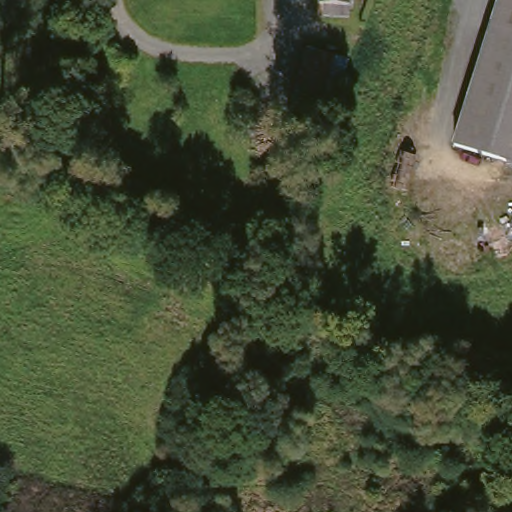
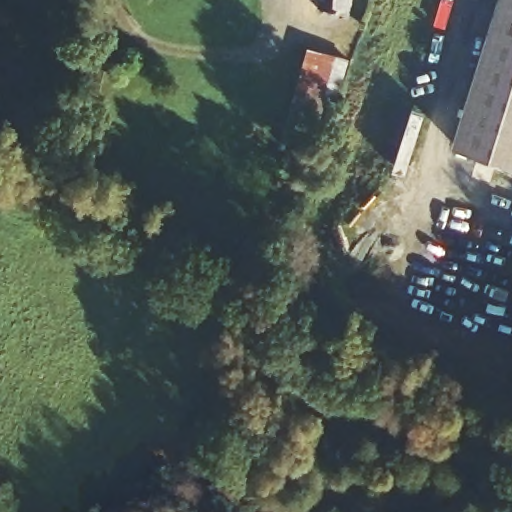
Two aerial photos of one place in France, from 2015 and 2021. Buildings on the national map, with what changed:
unchanged [(321,18),(323,3),(323,0),(349,0),(349,5),(348,20),(321,18)]
unchanged [(448,139),(501,0),(512,0),(512,163),(448,139)]
unchanged [(329,99),(301,90),(313,47),(343,54),(329,99)]

